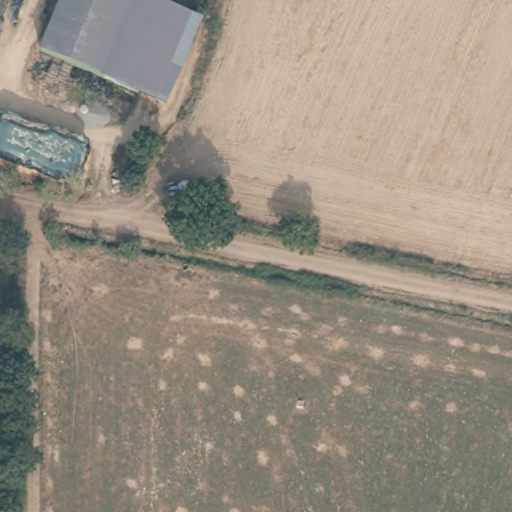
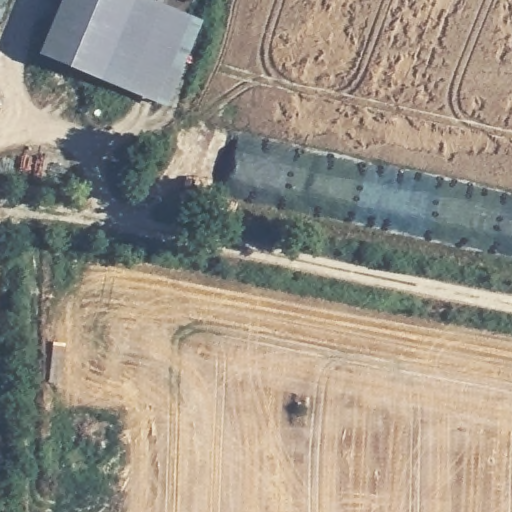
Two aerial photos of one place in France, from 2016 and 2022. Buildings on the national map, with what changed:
unchanged [(25,40),(27,33),(42,0),(158,0),(182,11),(147,94),(25,40)]
unchanged [(182,11),(221,27),(186,109),(178,107),(147,94),(182,11)]

